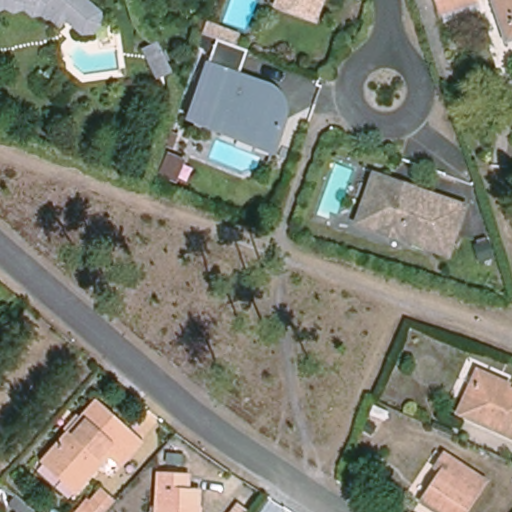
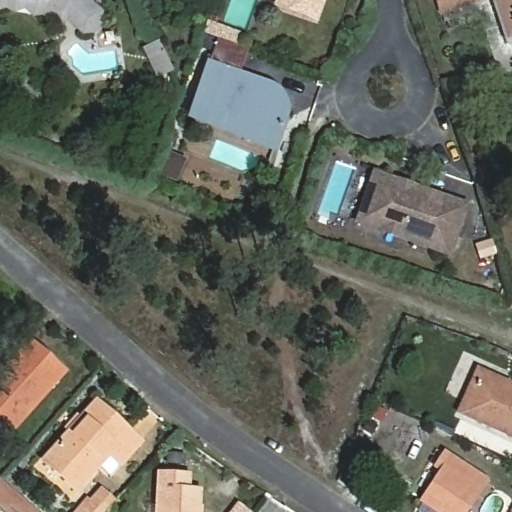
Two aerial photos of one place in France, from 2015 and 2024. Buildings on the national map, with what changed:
unchanged [(0,3),(0,0),(4,0),(3,3),(0,3)]
unchanged [(76,11),(73,15),(66,15),(60,10),(59,10),(50,20),(47,17),(43,17),(37,11),(37,8),(29,0),(70,0),(75,5),(76,11)]
unchanged [(60,10),(66,15),(73,15),(76,11),(75,5),(70,0),(78,0),(78,1),(90,12),(96,25),(87,35),(74,30),(62,18),(55,25),(50,20),(59,10),(60,10)]
unchanged [(280,4),(281,0),(324,0),(318,19),(280,4)]
unchanged [(442,0),(474,0),(446,10),(442,0)]
unchanged [(512,0),(512,26),(505,29),(495,0),(512,0)]
unchanged [(512,42),(510,43),(505,29),(512,26),(512,42)]
unchanged [(189,120),(191,114),(219,36),(246,45),(237,69),(266,80),(271,84),(276,87),(280,90),(282,94),(283,98),(285,103),(282,113),(274,134),(269,148),(189,120)]
unchanged [(356,222),(372,173),(391,179),(412,186),(464,203),(448,252),(399,236),(380,230),(356,222)]
unchanged [(477,247),(490,242),(495,260),(482,264),(477,247)]
new [(14,434),(0,421),(0,382),(35,343),(68,373),(14,434)]
unchanged [(508,385),(506,390),(512,392),(512,437),(460,414),(478,373),(508,385)]
unchanged [(112,478),(100,467),(78,492),(44,462),(98,404),(130,433),(142,444),(112,478)]
unchanged [(443,472),(438,468),(446,456),(484,481),(464,512),(436,512),(422,503),(443,472)]
unchanged [(160,477),(189,479),(188,492),(200,493),(199,512),(159,512),(160,477)]
unchanged [(37,511),(36,512),(18,512),(10,505),(19,495),(37,511)]
unchanged [(91,498),(104,510),(102,512),(77,512),(91,498)]

